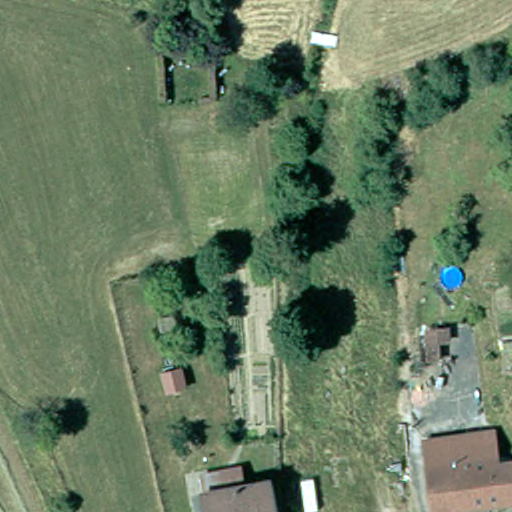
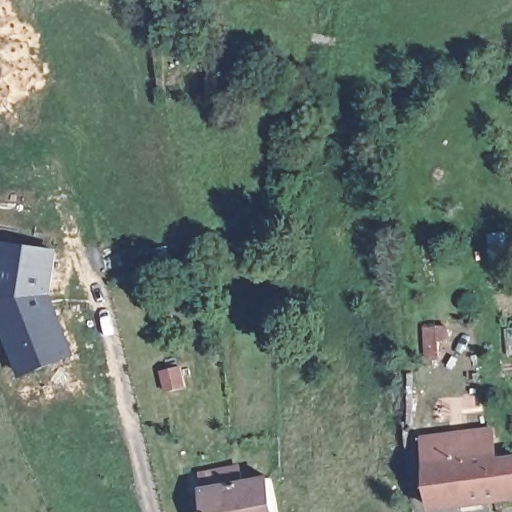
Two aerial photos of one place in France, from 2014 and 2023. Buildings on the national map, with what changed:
new [(0,314),(0,254),(1,244),(53,252),(47,295),(65,359),(22,372),(0,314)]
unchanged [(171,351),(147,352),(145,333),(170,331),(171,351)]
unchanged [(195,431),(206,430),(220,428),(261,423),(263,432),(280,512),(205,512),(194,451),(196,447),(195,431)]
unchanged [(458,437),(505,432),(506,454),(507,467),(512,467),(512,494),(436,504),(425,506),(422,488),(430,487),(435,487),(432,440),(458,437)]

